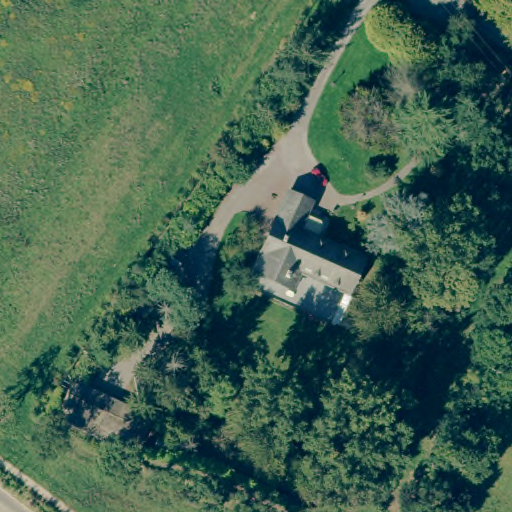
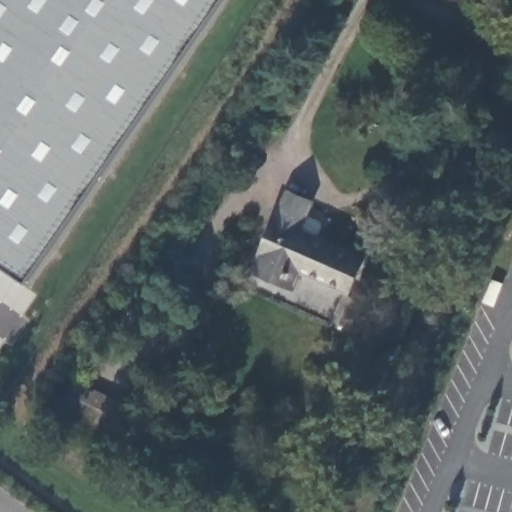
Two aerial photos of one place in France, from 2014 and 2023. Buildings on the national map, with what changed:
new [(0,0),(220,0),(23,281),(0,265),(0,0)]
unchanged [(337,279),(291,260),(283,273),(245,256),(278,181),(300,190),(288,220),(351,248),(337,279)]
unchanged [(120,450),(65,422),(70,414),(64,411),(76,386),(114,405),(111,409),(134,422),(120,450)]

